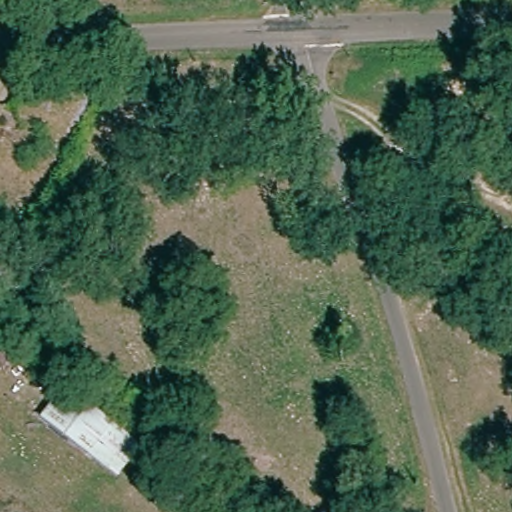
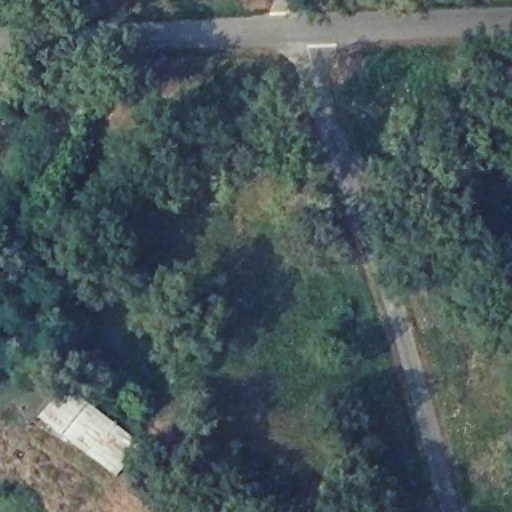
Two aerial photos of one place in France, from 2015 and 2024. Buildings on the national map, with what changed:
unchanged [(62,389),(139,446),(118,477),(40,417),(62,389)]

